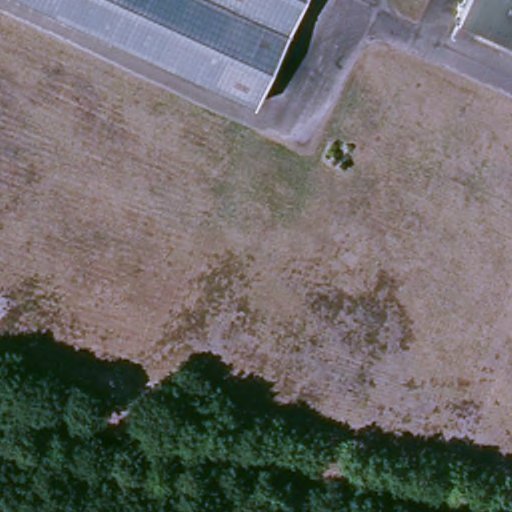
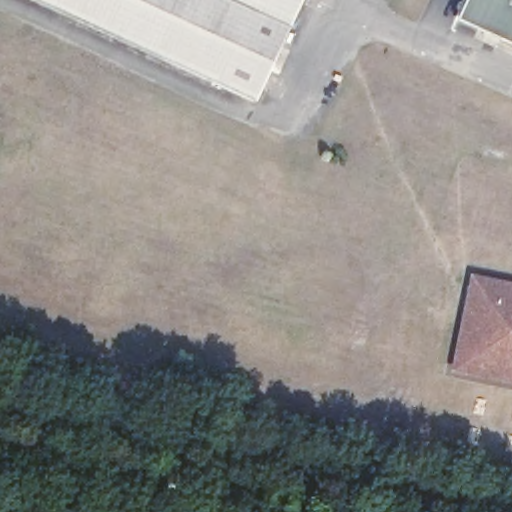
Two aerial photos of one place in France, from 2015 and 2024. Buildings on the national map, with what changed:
unchanged [(303,0),(260,99),(46,0),(303,0)]
unchanged [(469,0),(512,0),(512,46),(459,21),(469,0)]
new [(470,275),(512,283),(512,382),(451,371),(470,275)]

